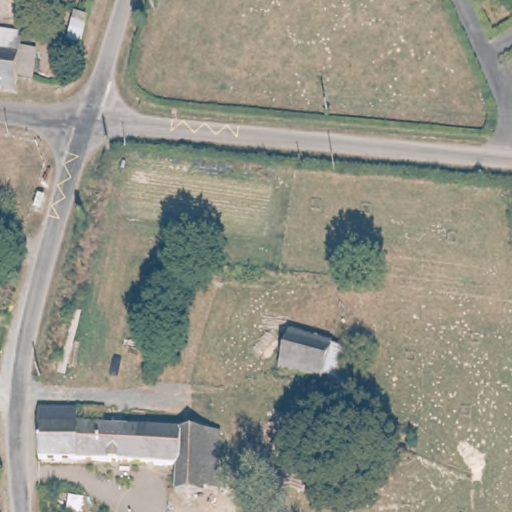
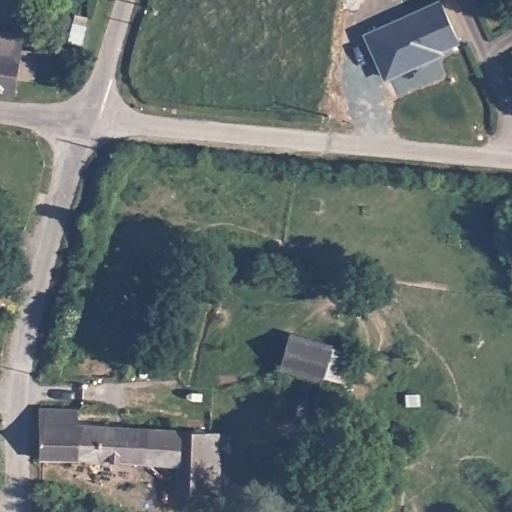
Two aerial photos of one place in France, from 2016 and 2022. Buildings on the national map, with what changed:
new [(440,0),(459,43),(441,51),(442,54),(382,80),(361,33),(435,0),(440,0)]
unchanged [(64,15),(87,24),(84,41),(57,32),(64,15)]
unchanged [(0,90),(0,36),(24,39),(18,93),(0,90)]
unchanged [(25,258),(9,314),(0,310),(0,249),(25,258)]
unchanged [(346,339),(338,381),(293,373),(302,334),(346,339)]
unchanged [(80,406),(82,420),(79,456),(42,455),(43,407),(80,406)]
unchanged [(82,420),(223,429),(222,481),(204,480),(203,489),(175,486),(179,465),(79,456),(82,420)]
unchanged [(275,497),(280,464),(302,466),(298,503),(275,497)]

